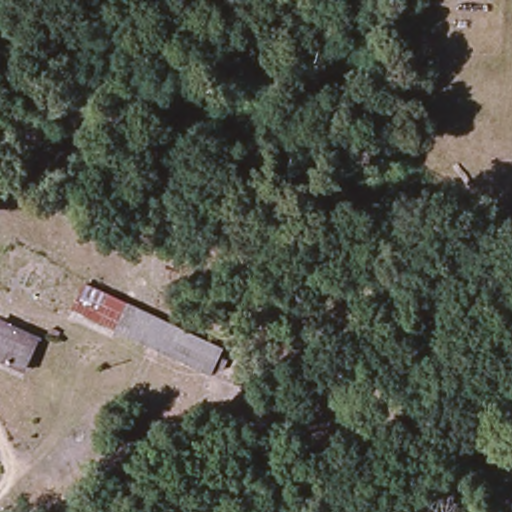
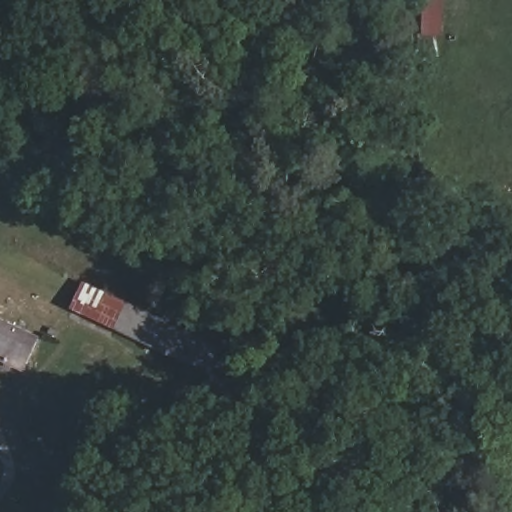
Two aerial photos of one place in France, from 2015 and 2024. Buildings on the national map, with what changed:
unchanged [(111,333),(107,340),(77,329),(91,293),(220,353),(208,378),(111,333)]
unchanged [(0,368),(0,327),(36,342),(21,376),(0,368)]

